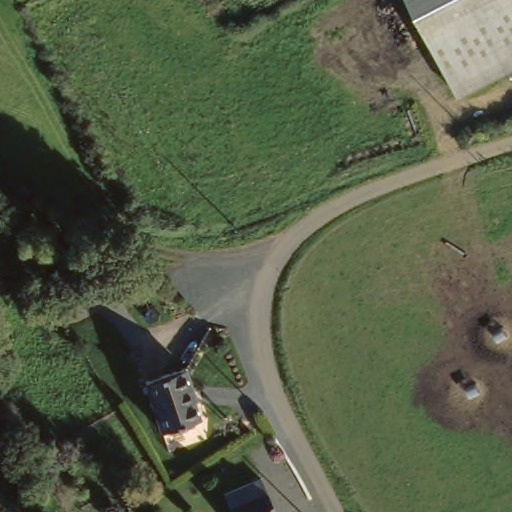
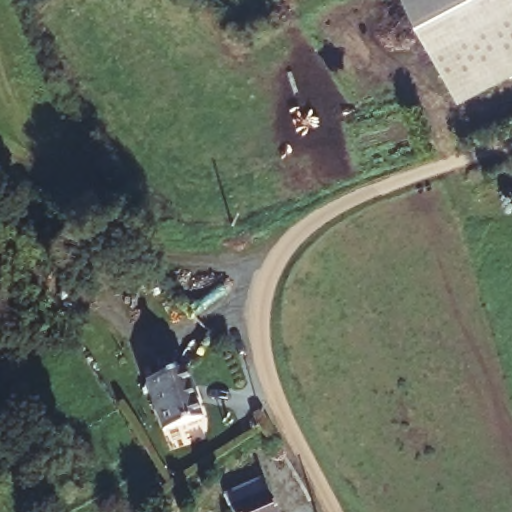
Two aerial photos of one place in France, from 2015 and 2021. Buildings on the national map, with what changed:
unchanged [(398,0),(512,0),(512,74),(454,106),(398,0)]
unchanged [(167,428),(154,374),(199,367),(204,387),(200,388),(208,423),(167,428)]
unchanged [(229,489),(271,473),(276,490),(284,512),(237,512),(234,504),(229,489)]

